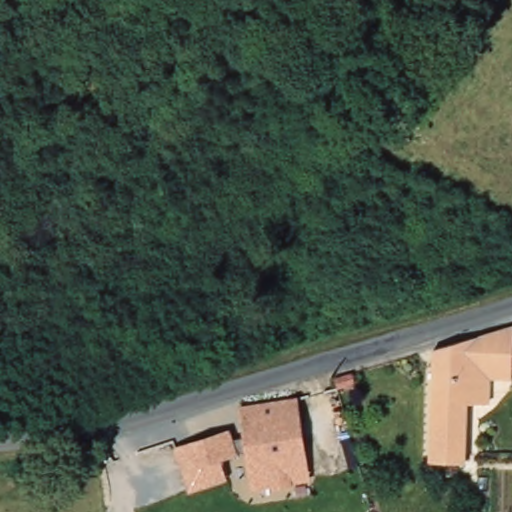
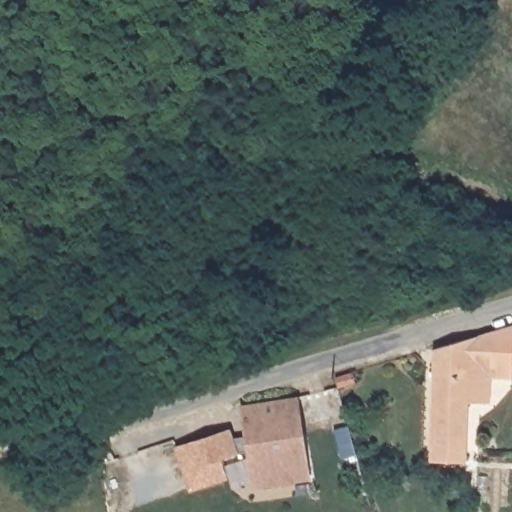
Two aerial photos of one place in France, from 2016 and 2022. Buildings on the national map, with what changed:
unchanged [(466,460),(431,459),(435,344),(512,324),(512,376),(469,374),(466,460)]
unchanged [(308,481),(255,490),(240,404),(295,397),(308,481)]
unchanged [(241,454),(223,460),(228,479),(190,492),(174,443),(231,428),(241,454)]

